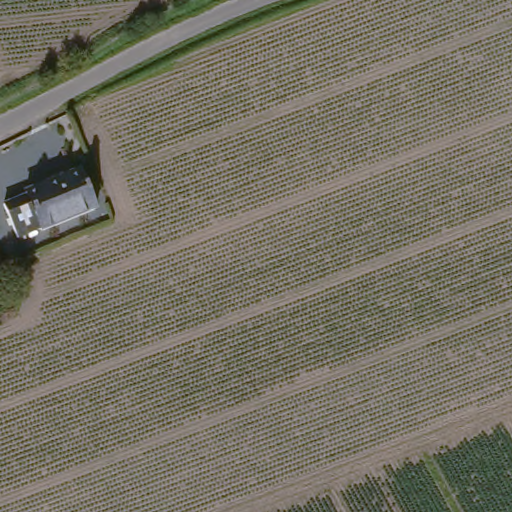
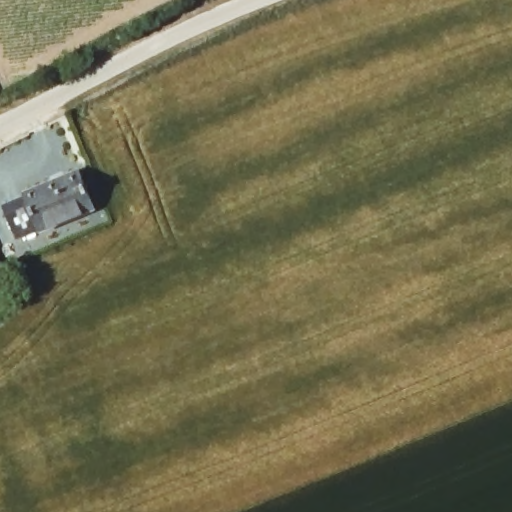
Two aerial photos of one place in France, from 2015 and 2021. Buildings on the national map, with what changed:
unchanged [(88,210),(36,232),(31,231),(9,240),(0,219),(0,204),(18,196),(16,192),(71,172),(88,210)]
unchanged [(0,281),(0,277),(1,280),(0,281)]

